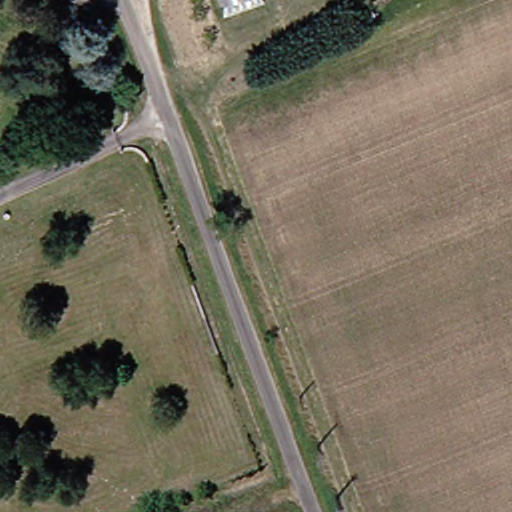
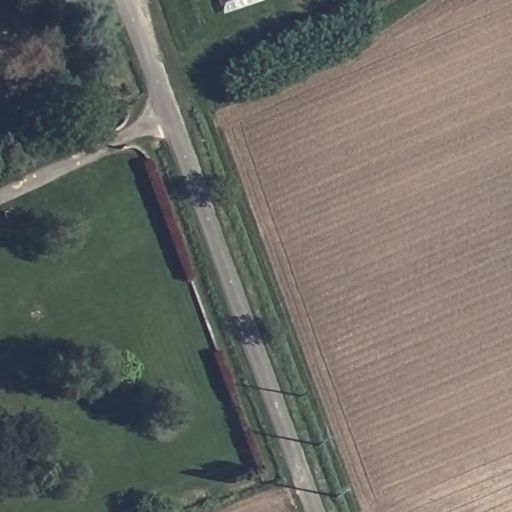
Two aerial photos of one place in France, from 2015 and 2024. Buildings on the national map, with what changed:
unchanged [(229,0),(267,0),(233,12),(229,0)]

